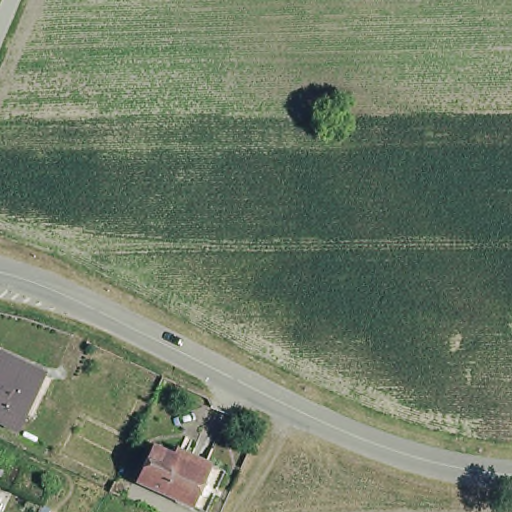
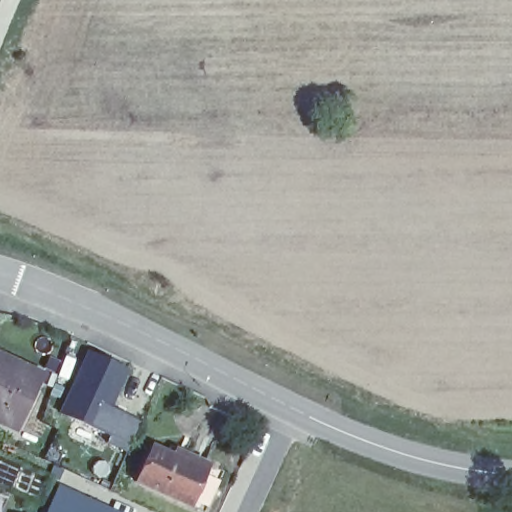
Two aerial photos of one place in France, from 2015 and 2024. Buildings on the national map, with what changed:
unchanged [(32,413),(23,408),(17,423),(0,415),(0,349),(42,369),(35,383),(45,387),(32,413)]
new [(129,374),(115,411),(140,423),(128,450),(65,420),(91,356),(129,374)]
unchanged [(163,439),(210,459),(188,507),(138,482),(163,439)]
new [(108,512),(49,512),(58,489),(108,512)]

